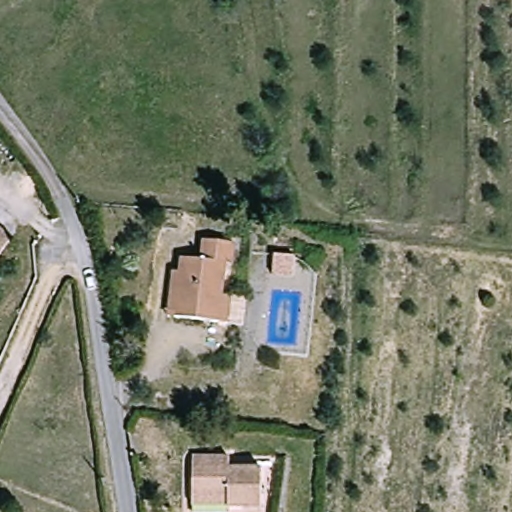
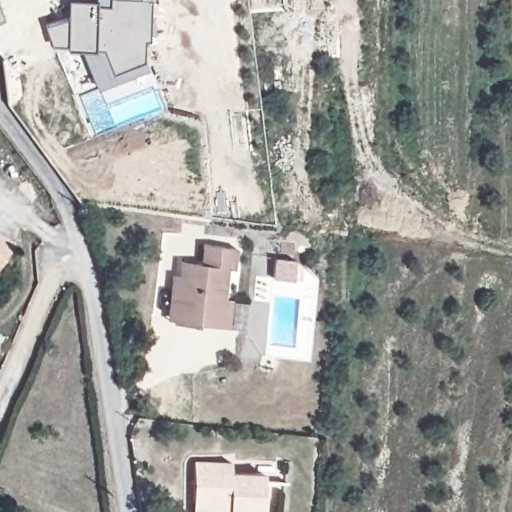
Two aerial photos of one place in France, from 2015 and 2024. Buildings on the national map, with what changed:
new [(46,24),(71,16),(71,0),(153,0),(152,37),(147,37),(146,57),(150,66),(101,88),(83,49),(69,48),(69,44),(54,45),(46,24)]
new [(3,21),(0,22),(0,12),(3,21)]
unchanged [(15,244),(0,265),(0,233),(15,244)]
unchanged [(168,281),(181,283),(186,257),(205,259),(207,241),(240,245),(238,263),(230,324),(218,322),(177,317),(164,316),(168,281)]
unchanged [(300,260),(299,280),(279,279),(280,259),(300,260)]
unchanged [(238,467),(238,474),(269,477),(266,512),(193,512),(194,498),(197,464),(238,467)]

